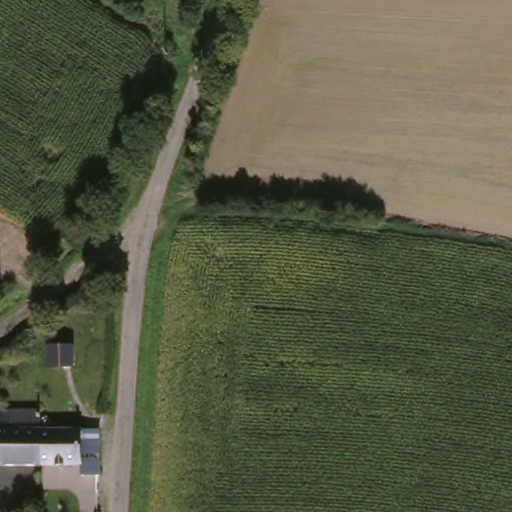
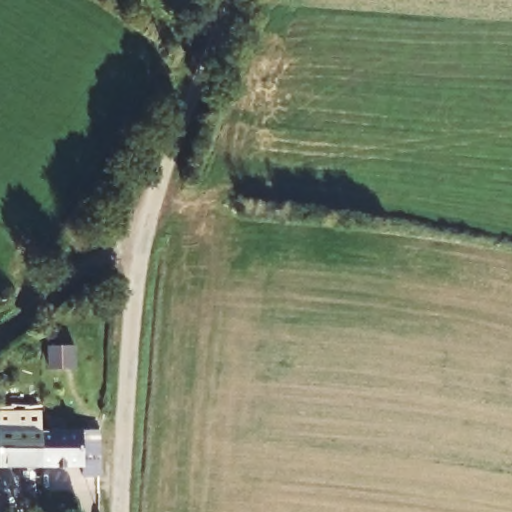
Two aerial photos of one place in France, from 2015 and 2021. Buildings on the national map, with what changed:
unchanged [(44,348),(71,347),(71,366),(45,367),(44,348)]
unchanged [(0,413),(40,413),(41,432),(41,467),(0,467),(0,413)]
unchanged [(82,432),(99,432),(99,467),(83,466),(41,467),(41,432),(82,432)]

